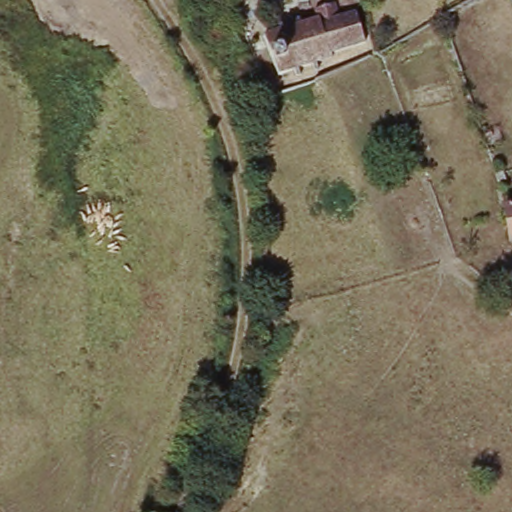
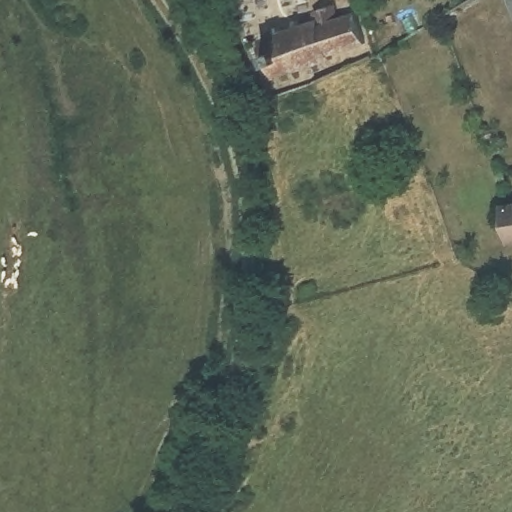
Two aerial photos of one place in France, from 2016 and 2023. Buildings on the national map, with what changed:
unchanged [(282,30),(281,25),(287,22),(289,27),(299,24),(299,22),(302,19),(304,23),(318,17),(315,9),(336,1),(342,17),(359,12),(369,40),(337,51),(338,57),(324,62),(324,67),(319,69),(316,65),(304,70),(304,76),(298,76),(297,72),(282,76),(268,36),(282,30)]
unchanged [(509,201),(512,200),(512,216),(509,201)]
unchanged [(512,235),(512,248),(509,248),(506,236),(512,235)]

